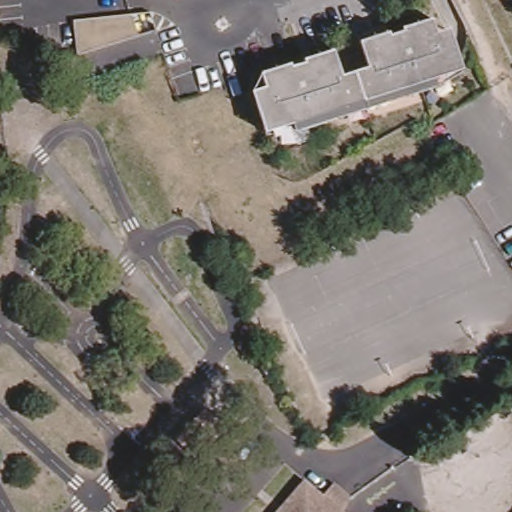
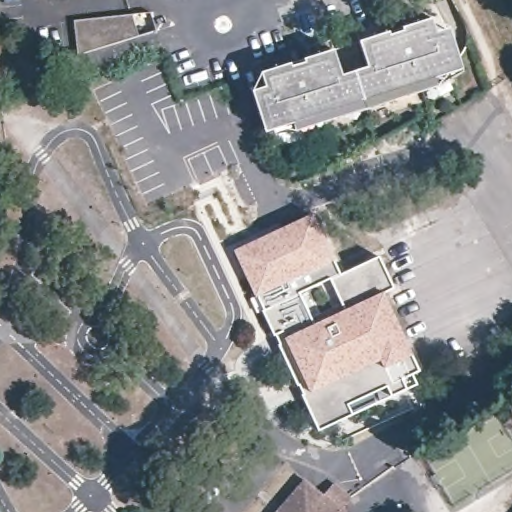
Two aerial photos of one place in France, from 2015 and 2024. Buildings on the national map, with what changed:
unchanged [(132,14),(152,11),(157,30),(78,56),(67,22),(132,14)]
unchanged [(273,127),(271,127),(262,98),(274,94),(266,69),(296,59),(309,55),(315,53),(312,43),(335,36),(338,46),(347,70),(372,62),(365,37),(361,26),(391,17),(395,28),(407,24),(437,14),(445,39),(458,35),(467,64),(467,66),(460,71),(459,72),(449,78),(443,81),(442,81),(413,91),(410,83),(398,86),(400,95),(372,104),(343,113),(341,105),(328,109),(331,117),(300,127),(273,127)]
new [(310,214),(340,276),(380,258),(394,289),(384,293),(422,371),(412,377),(417,386),(392,397),(387,388),(350,405),(353,414),(319,430),(233,251),(310,214)]
demolished [(205,408),(225,428),(196,456),(177,437),(205,408)]
unchanged [(302,481),(313,491),(327,477),(350,498),(337,512),(275,512),(302,481)]

